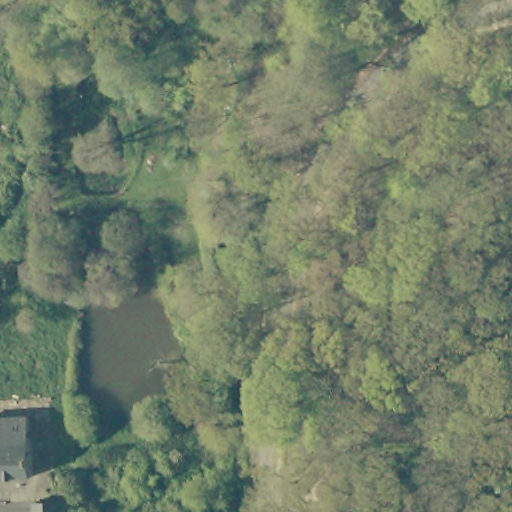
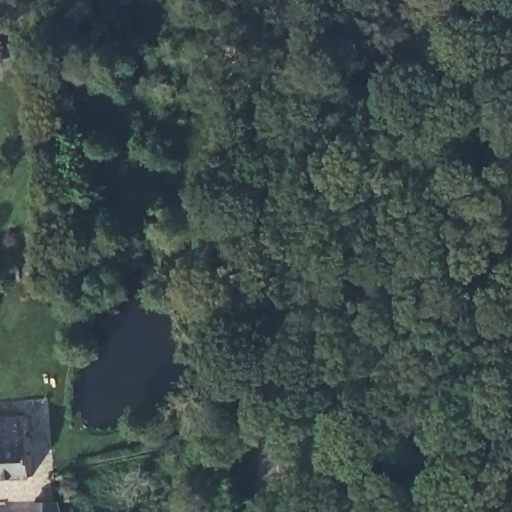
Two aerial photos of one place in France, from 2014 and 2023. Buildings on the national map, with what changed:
unchanged [(49,279),(24,284),(21,268),(46,264),(49,279)]
unchanged [(33,478),(0,480),(0,421),(30,419),(33,478)]
unchanged [(32,506),(54,501),(57,512),(34,512),(32,506)]

